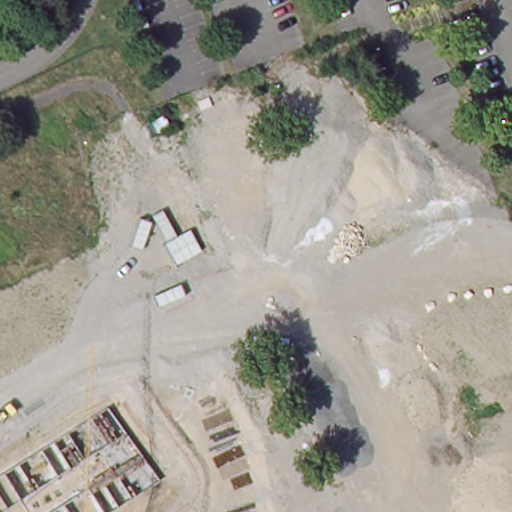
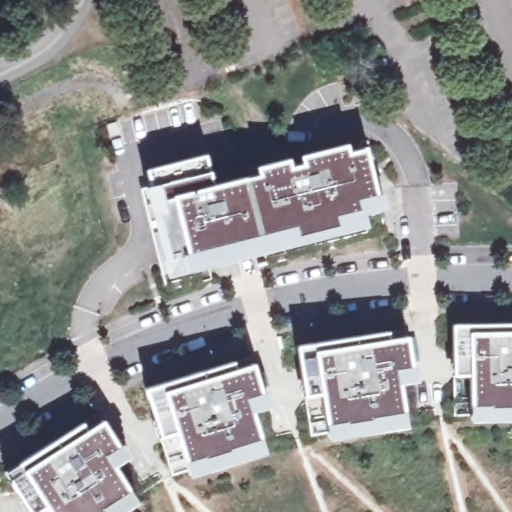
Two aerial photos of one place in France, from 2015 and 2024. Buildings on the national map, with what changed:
new [(205,155),(209,170),(212,185),(255,174),(254,166),(287,158),(290,165),(300,162),(299,155),(345,144),(347,151),(364,147),(377,194),(381,192),(385,207),(364,213),(367,225),(189,270),(167,276),(144,186),(151,185),(145,169),(205,155)]
new [(512,323),(512,420),(468,420),(469,373),(451,374),(452,323),(512,323)]
new [(389,330),(390,338),(407,335),(411,363),(415,363),(417,380),(400,382),(406,427),(327,439),(319,391),(303,393),(295,345),(389,330)]
new [(232,362),(234,368),(253,363),(261,390),(265,390),(270,405),(254,410),(266,452),(187,477),(174,431),(160,436),(145,390),(232,362)]
new [(5,473),(82,423),(85,429),(102,420),(117,444),(120,441),(127,455),(113,465),(135,500),(116,512),(49,512),(45,507),(37,512),(28,512),(5,473)]

